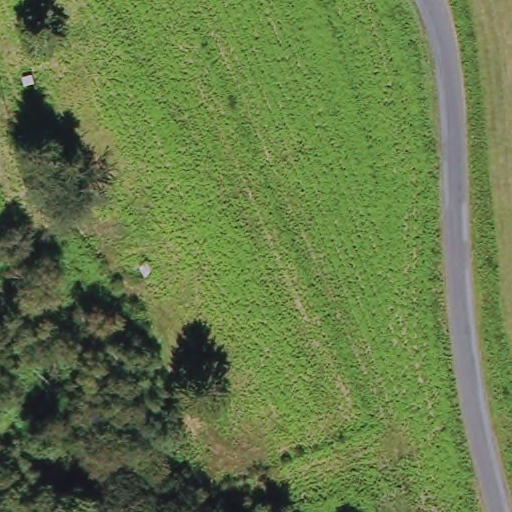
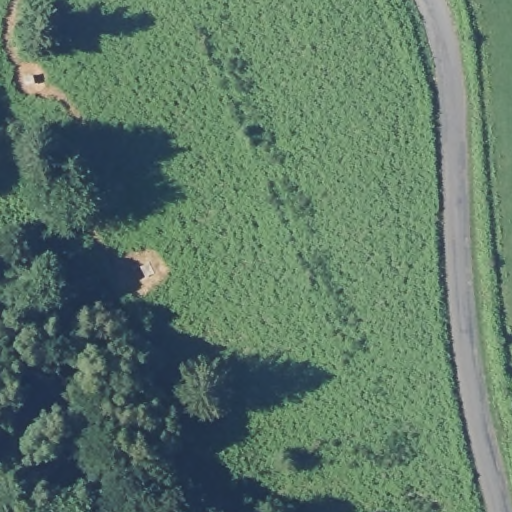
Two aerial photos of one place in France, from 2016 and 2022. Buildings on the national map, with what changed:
unchanged [(33,73),(35,80),(25,84),(23,76),(33,73)]
unchanged [(158,276),(144,274),(142,264),(153,263),(158,276)]

